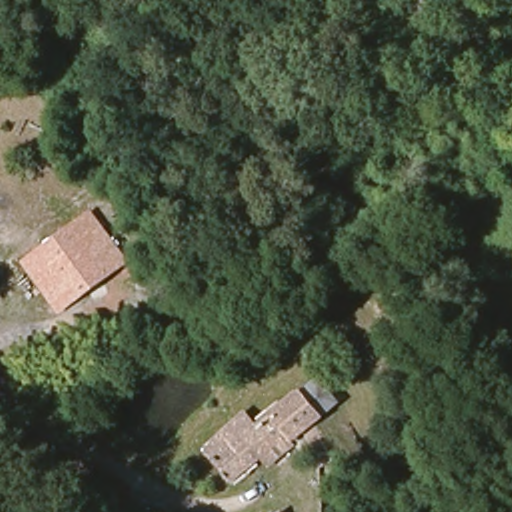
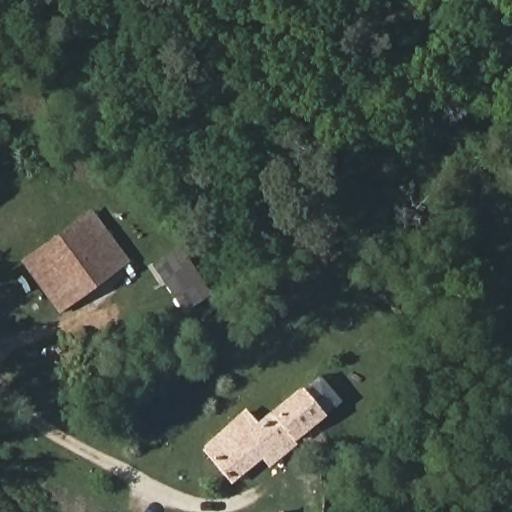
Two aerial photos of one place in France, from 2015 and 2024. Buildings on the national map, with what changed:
unchanged [(57,313),(19,261),(89,209),(129,261),(57,313)]
new [(180,313),(157,277),(186,258),(209,295),(180,313)]
unchanged [(267,463),(258,453),(227,477),(203,448),(207,445),(244,416),(258,431),(282,413),(292,406),(302,397),(319,383),(336,405),(319,417),(307,426),(293,436),(285,442),(288,447),(267,463)]
unchanged [(301,501),(307,512),(279,512),(301,501)]

